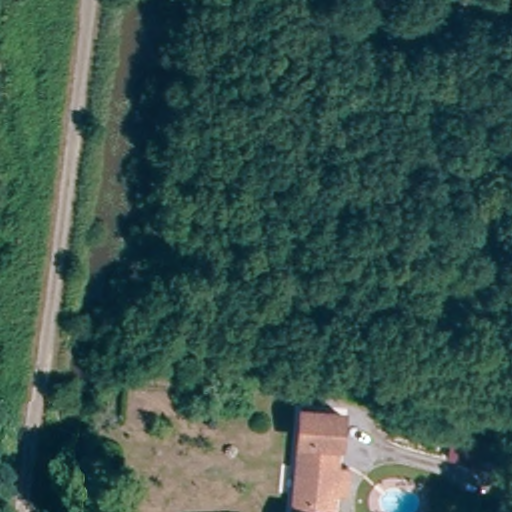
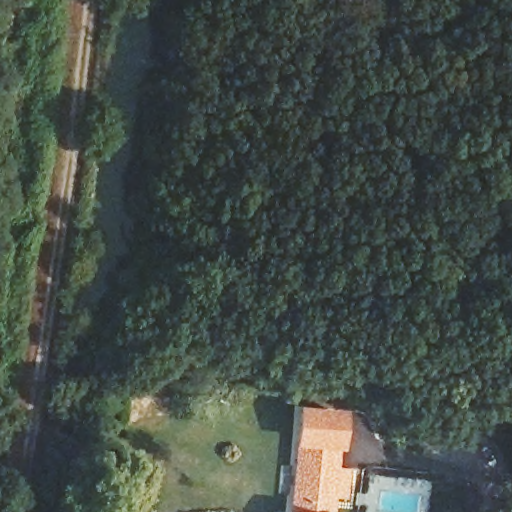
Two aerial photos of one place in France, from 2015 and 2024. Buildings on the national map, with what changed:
unchanged [(339,450),(333,451),(329,512),(290,512),(294,453),(290,453),(295,416),(341,417),(339,450)]

